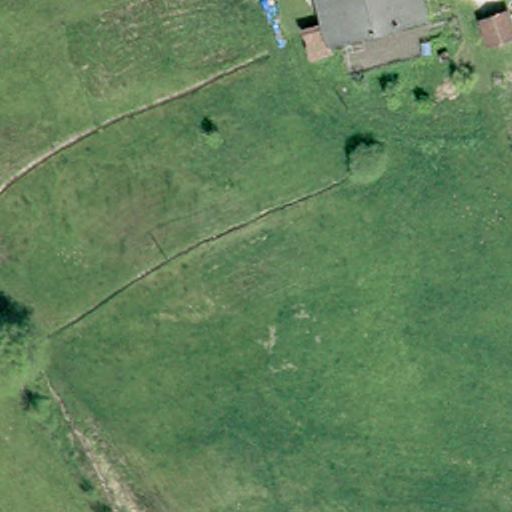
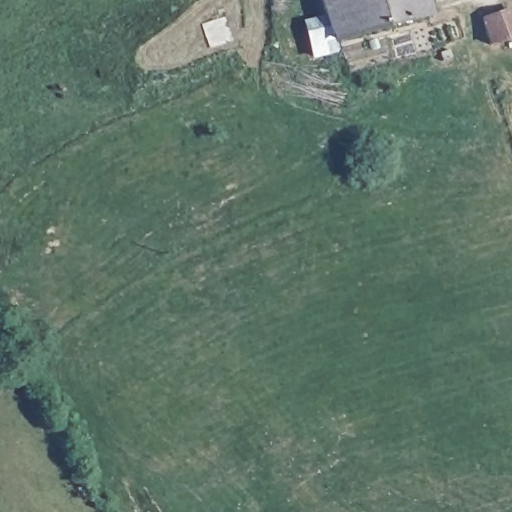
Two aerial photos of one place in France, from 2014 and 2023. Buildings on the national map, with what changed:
unchanged [(334,56),(311,61),(305,37),(329,30),(321,0),(425,0),(431,22),(344,43),(331,46),(334,56)]
unchanged [(509,19),(512,30),(512,46),(488,52),(481,27),(509,19)]

